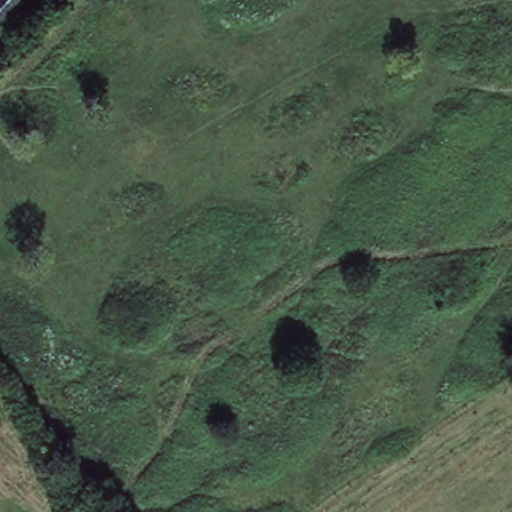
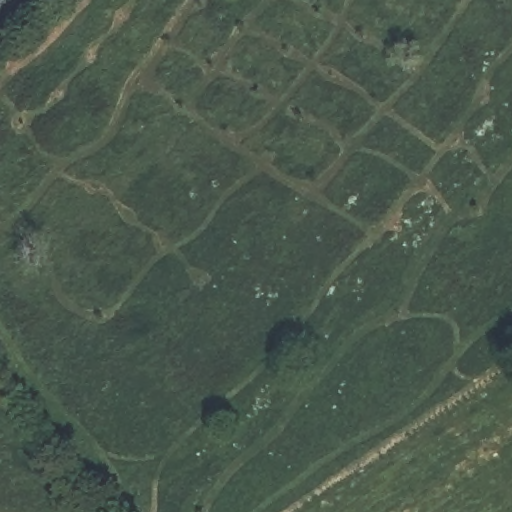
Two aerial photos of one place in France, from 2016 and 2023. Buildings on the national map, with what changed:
unchanged [(0,0),(15,0),(0,17),(0,0)]

